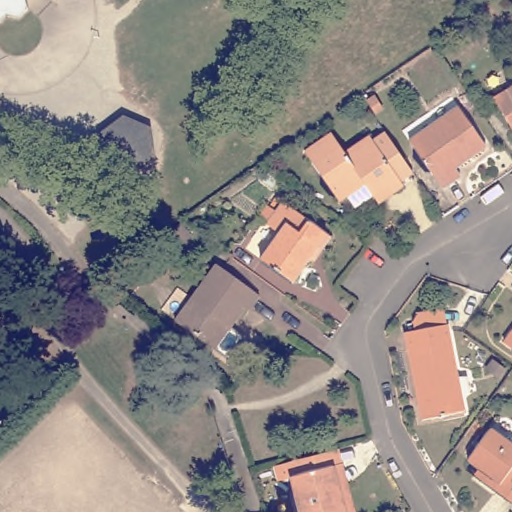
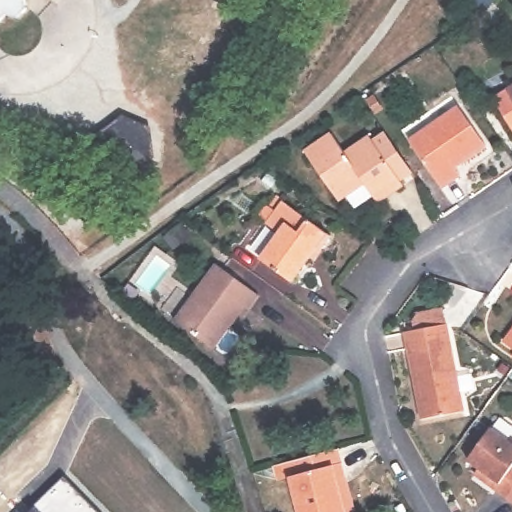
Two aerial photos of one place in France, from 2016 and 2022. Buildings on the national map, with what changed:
unchanged [(32,13),(24,21),(11,19),(6,23),(0,22),(0,0),(28,0),(32,13)]
unchanged [(496,106),(512,95),(512,129),(496,106)]
unchanged [(461,108),(490,147),(459,170),(464,178),(448,190),(414,143),(461,108)]
unchanged [(126,117),(154,129),(158,158),(135,177),(106,164),(102,136),(126,117)]
unchanged [(380,208),(376,202),(358,213),(348,200),(341,205),(307,157),(333,138),(347,157),(371,142),(373,146),(388,136),(396,147),(417,176),(402,187),(404,191),(380,208)]
unchanged [(284,238),(271,229),(273,227),(265,221),(273,210),(281,215),(287,207),(335,241),(325,256),(321,253),(297,287),(266,265),(284,238)]
unchanged [(213,346),(180,322),(221,263),(264,294),(252,312),(247,309),(234,326),(218,349),(213,346)]
unchanged [(412,325),(418,317),(447,312),(450,328),(468,415),(426,424),(409,335),(414,335),(412,325)]
unchanged [(508,345),(512,339),(512,348),(508,345)]
unchanged [(506,498),(478,477),(471,473),(474,468),(465,462),(489,428),(512,446),(512,503),(506,498)]
unchanged [(282,486),(279,471),(336,458),(345,456),(359,512),(304,512),(296,482),(282,486)]
new [(98,512),(28,512),(64,476),(98,512)]

